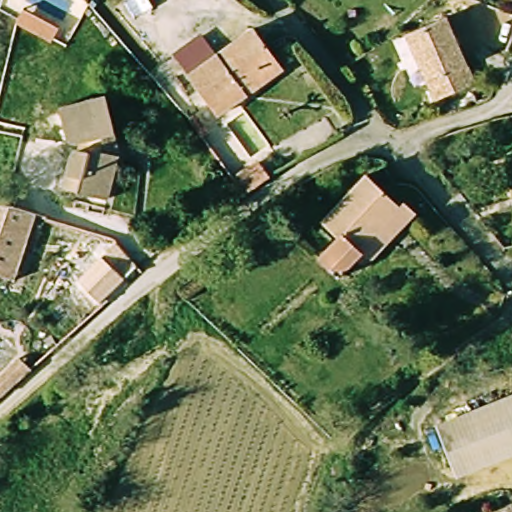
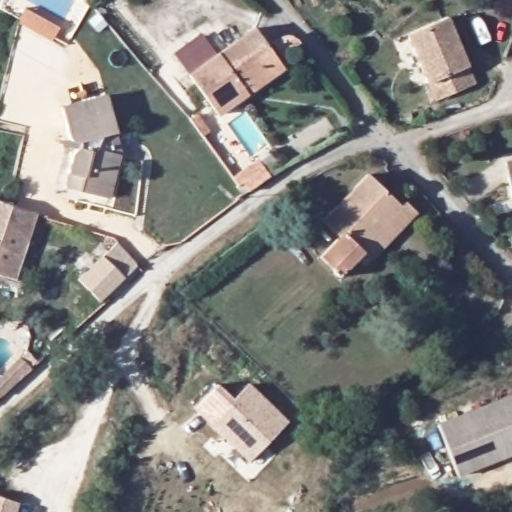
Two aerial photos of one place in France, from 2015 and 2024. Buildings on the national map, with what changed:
new [(24,8),(60,28),(52,42),(17,24),(24,8)]
unchanged [(441,19),(481,79),(446,103),(406,43),(441,19)]
unchanged [(188,71),(255,29),(264,44),(279,70),(245,91),(215,110),(188,71)]
unchanged [(114,158),(110,194),(80,187),(80,174),(65,170),(70,150),(87,153),(88,144),(83,136),(80,129),(79,115),(77,102),(107,96),(116,134),(117,144),(114,158)]
unchanged [(257,157),(272,179),(238,200),(228,177),(257,157)]
unchanged [(512,160),(512,198),(506,199),(504,160),(512,160)]
unchanged [(336,235),(319,219),(367,170),(400,207),(406,200),(418,214),(372,266),(361,255),(335,280),(314,256),(336,235)]
unchanged [(30,212),(20,277),(0,274),(0,208),(30,212)]
unchanged [(109,248),(130,267),(131,268),(94,303),(72,283),(109,248)]
unchanged [(18,355),(28,367),(25,372),(0,393),(0,371),(18,355)]
new [(249,462),(194,407),(217,384),(232,399),(248,383),(287,421),(267,441),(249,462)]
unchanged [(512,453),(465,481),(438,435),(512,391),(512,453)]
new [(15,503),(13,512),(0,512),(0,499),(15,503)]

